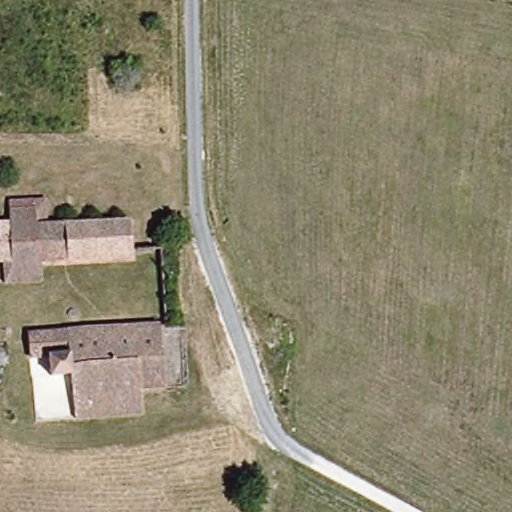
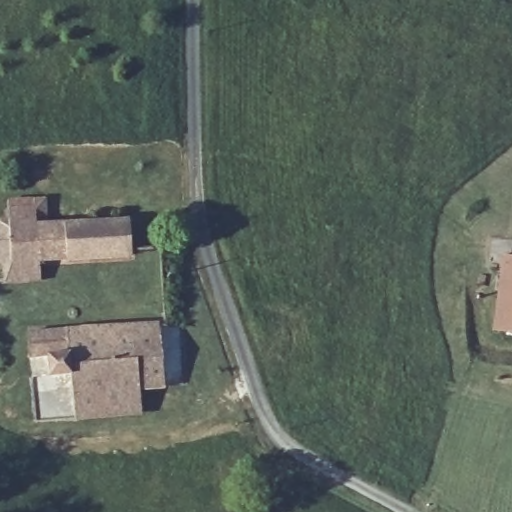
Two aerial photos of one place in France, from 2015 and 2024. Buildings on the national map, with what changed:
unchanged [(45,222),(124,222),(125,256),(36,256),(37,277),(0,277),(0,267),(0,215),(7,215),(7,197),(45,198),(45,222)]
new [(512,255),(512,333),(494,331),(503,254),(512,255)]
unchanged [(67,371),(47,371),(45,350),(27,351),(26,327),(157,325),(159,391),(135,392),(136,416),(71,420),(67,371)]

